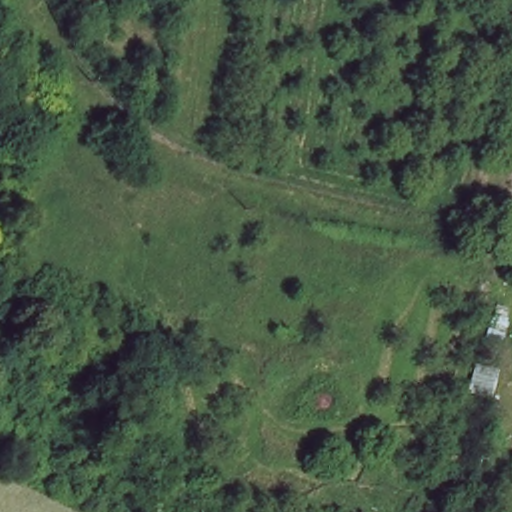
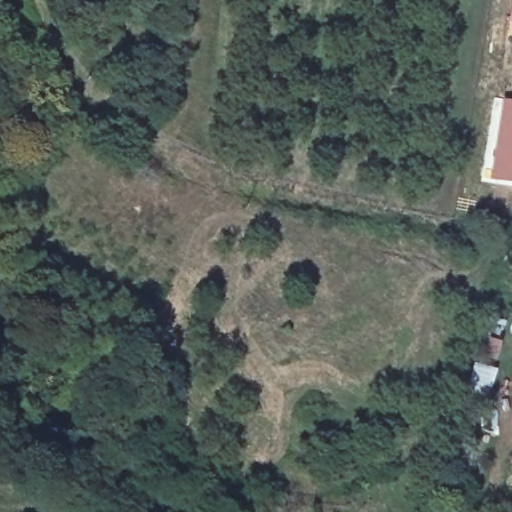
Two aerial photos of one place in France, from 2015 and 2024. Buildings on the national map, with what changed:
new [(512,23),(508,22),(512,0),(512,23)]
new [(512,100),(512,185),(488,180),(502,98),(512,100)]

